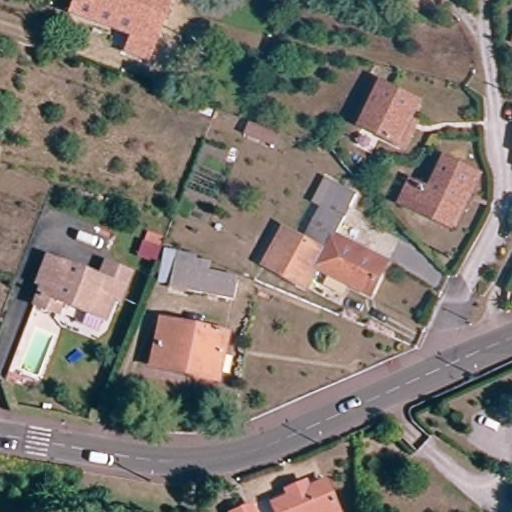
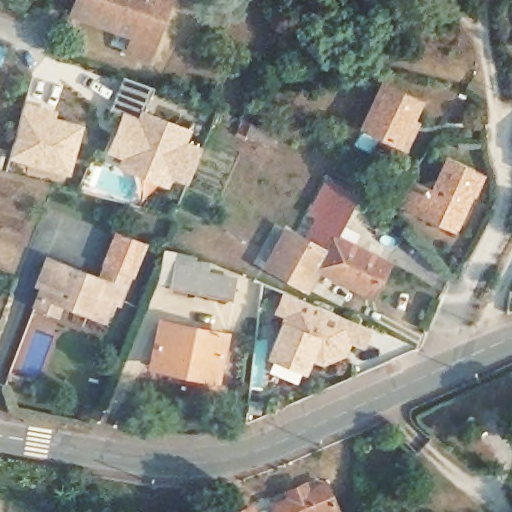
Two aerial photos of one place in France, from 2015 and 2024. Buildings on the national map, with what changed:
unchanged [(140,54),(121,46),(127,30),(65,7),(68,0),(161,0),(140,54)]
new [(154,87),(145,110),(192,130),(189,141),(203,146),(187,185),(172,178),(168,186),(116,169),(121,158),(106,152),(122,114),(111,110),(125,76),(154,87)]
unchanged [(400,150),(391,146),(358,130),(379,87),(414,104),(406,120),(412,124),(400,150)]
new [(58,110),(56,116),(85,124),(70,175),(10,159),(26,104),(58,110)]
unchanged [(280,134),(275,147),(245,136),(250,123),(280,134)]
unchanged [(403,212),(392,207),(402,185),(417,192),(422,195),(436,163),(470,178),(462,195),(463,196),(447,232),(442,230),(403,212)]
unchanged [(335,235),(388,264),(378,281),(305,240),(322,207),(313,204),(325,180),(334,185),(355,195),(335,235)]
unchanged [(190,214),(187,222),(177,219),(180,210),(190,214)]
unchanged [(378,281),(370,296),(318,268),(307,288),(265,265),(284,229),(305,240),(378,281)]
unchanged [(197,267),(225,272),(221,295),(157,281),(162,256),(164,250),(184,255),(199,258),(197,267)]
unchanged [(82,319),(53,307),(49,318),(27,310),(35,290),(30,288),(34,280),(40,262),(92,283),(98,268),(123,278),(111,307),(104,305),(98,320),(96,325),(82,319)]
new [(372,329),(366,347),(350,343),(345,355),(322,365),(311,362),(306,372),(266,357),(280,320),(282,316),(274,313),(282,292),(372,329)]
unchanged [(195,376),(150,366),(160,321),(224,335),(216,374),(215,380),(195,376)]
unchanged [(10,372),(25,378),(21,385),(7,380),(10,372)]
unchanged [(287,485),(284,478),(305,469),(308,476),(324,470),(337,501),(333,502),(338,512),(279,512),(270,492),(287,485)]
unchanged [(254,512),(229,512),(250,503),(254,512)]

